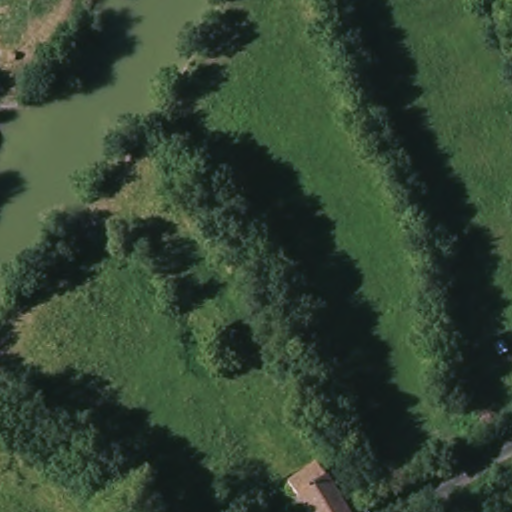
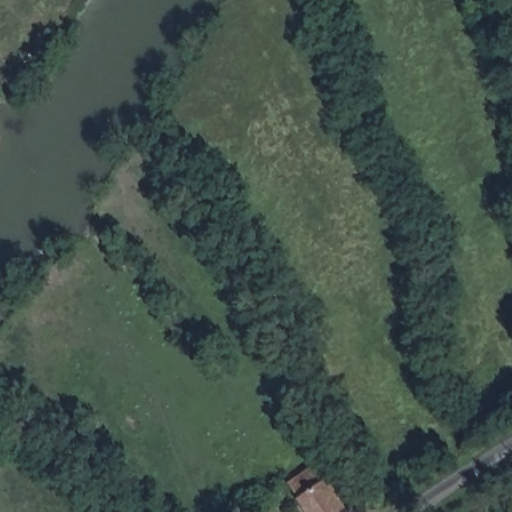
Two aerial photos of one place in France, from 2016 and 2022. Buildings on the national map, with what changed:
unchanged [(315,470),(345,512),(304,512),(289,491),(315,470)]
unchanged [(354,512),(351,512),(353,510),(354,512)]

